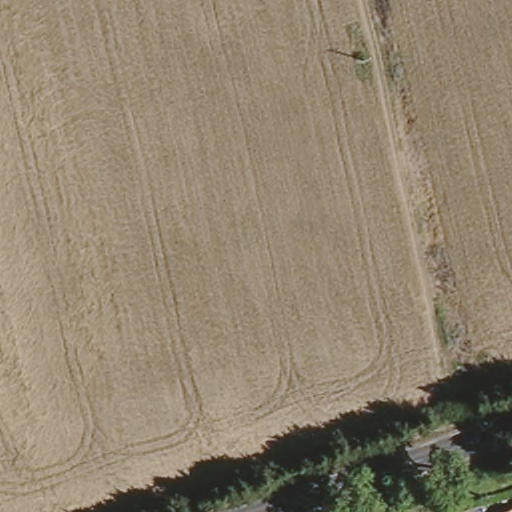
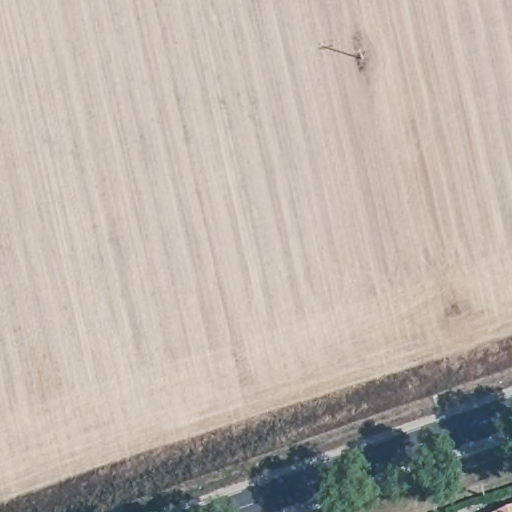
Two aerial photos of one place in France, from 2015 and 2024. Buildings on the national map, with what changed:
unchanged [(512,508),(512,512),(502,512),(512,508)]

